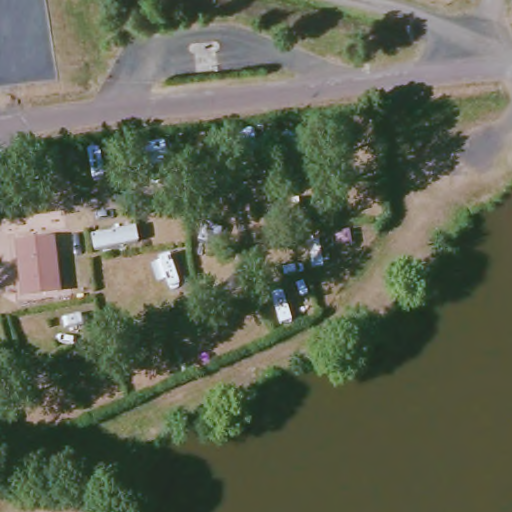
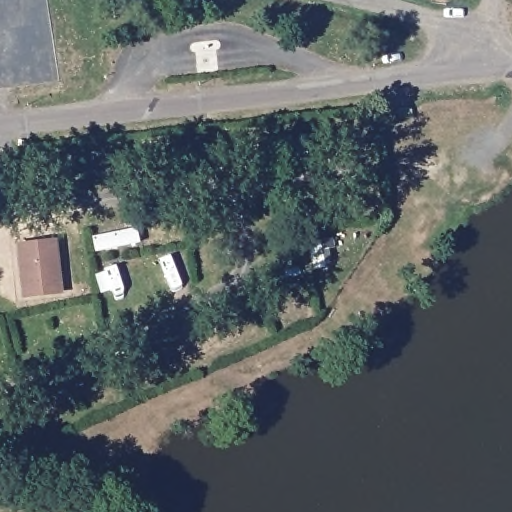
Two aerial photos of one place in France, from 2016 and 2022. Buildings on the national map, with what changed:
unchanged [(15,248),(49,246),(52,294),(18,296),(15,248)]

